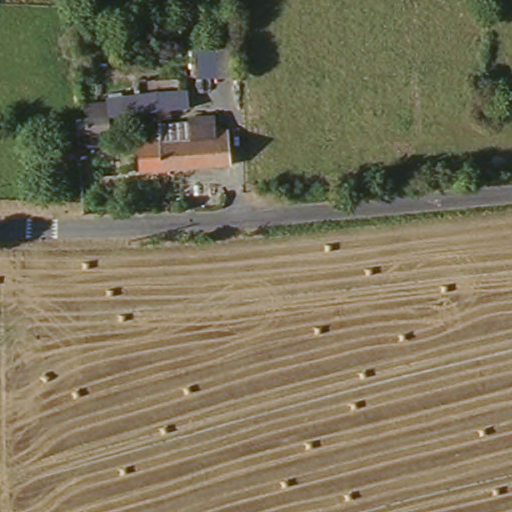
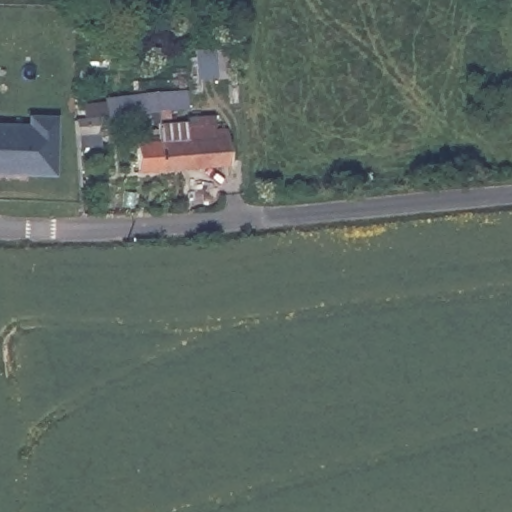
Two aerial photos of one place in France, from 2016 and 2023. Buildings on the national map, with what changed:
unchanged [(190,82),(188,55),(220,55),(220,82),(190,82)]
unchanged [(120,95),(121,99),(182,96),(187,112),(107,120),(104,97),(120,95)]
unchanged [(106,117),(106,137),(95,137),(96,153),(73,155),(71,120),(106,117)]
new [(27,118),(57,119),(55,179),(0,177),(0,126),(26,127),(27,118)]
unchanged [(216,133),(229,135),(230,172),(138,176),(136,147),(160,145),(159,129),(187,127),(187,122),(215,122),(216,133)]

